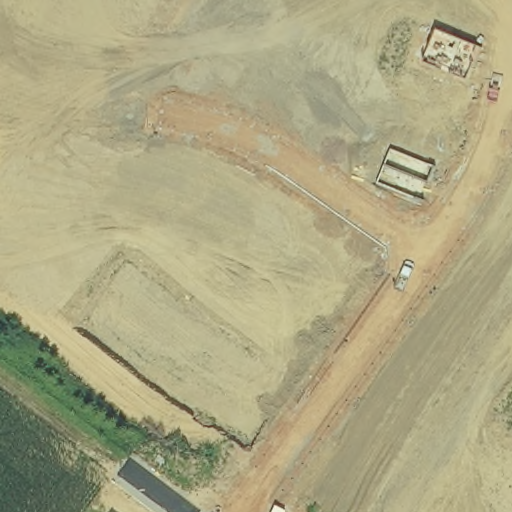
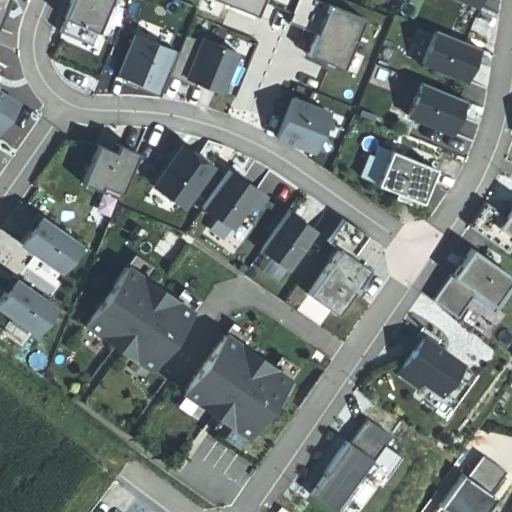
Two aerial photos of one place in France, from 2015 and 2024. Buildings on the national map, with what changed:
new [(11,0),(4,18),(0,16),(0,17),(0,0),(11,0)]
new [(70,0),(109,0),(96,31),(91,44),(58,31),(63,17),(70,0)]
new [(220,0),(298,0),(294,13),(266,2),(260,16),(220,0)]
new [(319,34),(291,23),(291,24),(289,23),(299,0),(321,0),(366,19),(346,70),(310,55),(319,34)]
unchanged [(480,6),(465,0),(482,0),(480,6)]
unchanged [(423,61),(435,28),(479,47),(466,81),(423,61)]
new [(115,74),(133,32),(176,51),(166,74),(159,94),(115,74)]
new [(199,40),(201,35),(239,51),(223,94),(196,83),(194,86),(166,74),(176,51),(184,34),(199,40)]
new [(471,102),(470,103),(464,101),(459,115),(462,116),(454,134),(411,117),(424,83),(471,102)]
new [(1,85),(0,86),(0,84),(1,85)]
new [(23,105),(3,136),(0,134),(0,89),(23,105)]
new [(330,110),(314,154),(274,139),(291,95),(330,110)]
new [(120,191),(101,184),(99,189),(81,182),(97,144),(114,151),(118,144),(136,152),(120,191)]
new [(184,147),(200,158),(199,160),(211,169),(214,164),(216,165),(186,206),(157,186),(184,147)]
unchanged [(379,187),(392,150),(437,166),(423,204),(379,187)]
new [(233,168),(234,168),(231,173),(243,182),(244,180),(269,196),(259,211),(250,205),(234,228),(205,208),(233,168)]
unchanged [(509,217),(512,213),(512,251),(511,254),(473,228),(489,204),(509,217)]
unchanged [(292,209),(293,209),(289,214),(303,223),(304,221),(318,230),(291,269),(263,250),(292,209)]
new [(78,243),(59,272),(16,245),(38,215),(78,243)]
new [(370,236),(355,258),(373,270),(341,314),(313,296),(343,250),(330,242),(346,219),(370,236)]
new [(456,276),(474,249),(512,274),(512,284),(511,286),(512,287),(512,291),(496,314),(474,299),(460,319),(435,301),(454,275),(456,276)]
new [(130,266),(195,311),(154,369),(89,325),(130,266)]
new [(36,334),(0,310),(0,297),(14,276),(55,305),(36,334)]
new [(228,334),(293,379),(253,437),(188,392),(228,334)]
unchanged [(426,337),(464,364),(443,395),(424,382),(421,388),(400,373),(426,337)]
new [(349,441),(352,443),(369,419),(394,436),(388,445),(404,456),(383,487),(366,476),(341,512),(338,512),(315,496),(313,495),(328,473),(349,441)]
new [(488,492),(494,497),(483,512),(435,512),(439,506),(462,475),(465,477),(483,456),(504,471),(488,492)]
new [(290,510),(289,512),(277,512),(280,506),(290,510)]

